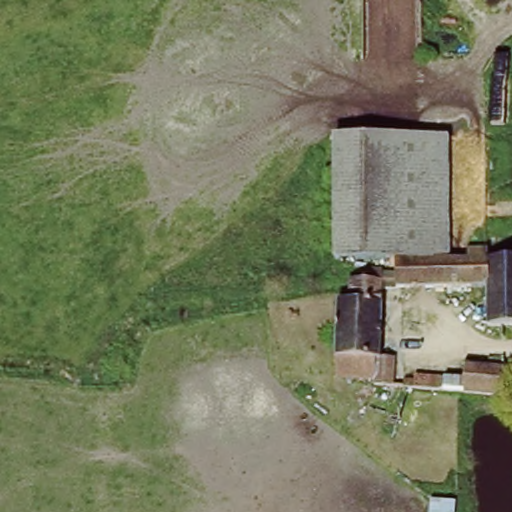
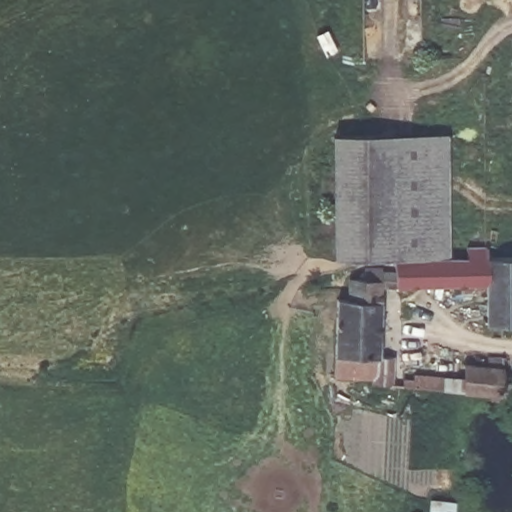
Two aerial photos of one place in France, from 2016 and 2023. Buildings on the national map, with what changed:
unchanged [(387,268),(384,263),(366,264),(338,264),(332,264),(333,233),(337,143),(450,147),(447,230),(447,233),(445,264),(400,263),(395,268),(387,268)]
unchanged [(492,254),(493,241),(512,241),(512,320),(493,319),(492,291),(382,287),(381,353),(390,360),(388,396),(375,395),(375,376),(362,376),(362,381),(337,381),(337,312),(337,299),(350,299),(351,279),(365,279),(366,264),(384,263),(387,268),(395,268),(400,263),(445,264),(469,265),(470,254),(492,254)]
unchanged [(416,369),(463,372),(463,363),(487,363),(488,354),(505,355),(502,397),(497,396),(417,389),(416,369)]

